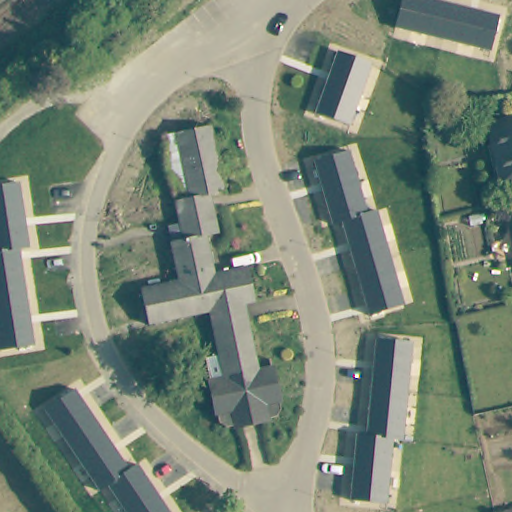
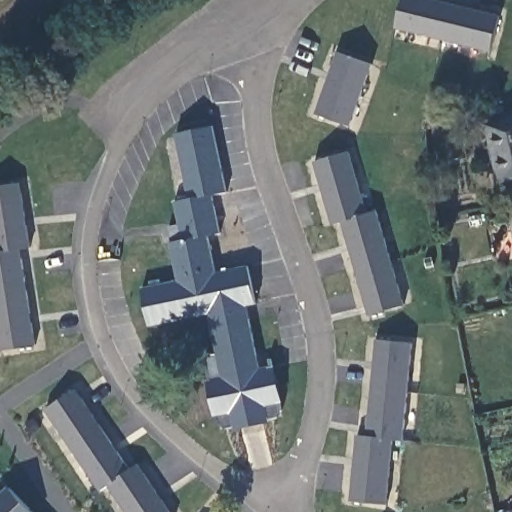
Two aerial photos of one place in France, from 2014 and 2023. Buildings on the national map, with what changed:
unchanged [(401,0),(426,0),(495,15),(488,51),(394,30),(401,0)]
unchanged [(335,52),(368,63),(346,125),(313,113),(335,52)]
unchanged [(512,124),(512,183),(500,186),(487,128),(512,124)]
unchanged [(177,248),(178,248),(175,233),(185,231),(180,207),(193,204),(181,138),(192,136),(214,131),(228,196),(221,198),(213,200),(221,238),(211,240),(219,278),(190,284),(185,285),(177,248)]
unchanged [(343,225),(335,228),(315,167),(348,156),(369,218),(377,216),(403,307),(370,319),(343,225)]
unchanged [(0,348),(0,192),(21,188),(31,252),(22,253),(36,348),(1,354),(0,348)]
unchanged [(182,322),(150,328),(144,293),(172,287),(185,285),(190,284),(219,278),(249,272),(256,307),(241,310),(244,323),(245,323),(250,322),(259,369),(273,367),(275,375),(272,375),(275,395),(279,394),(282,410),(277,417),(226,427),(219,422),(216,406),(220,406),(216,386),(213,387),(207,358),(220,355),(212,316),(182,322)]
unchanged [(358,440),(366,441),(375,345),(410,349),(401,445),(393,444),(386,509),(353,504),(358,440)]
unchanged [(99,489),(45,410),(74,389),(128,468),(136,463),(168,512),(125,512),(107,484),(99,489)]
new [(32,512),(0,512),(0,495),(8,487),(32,512)]

